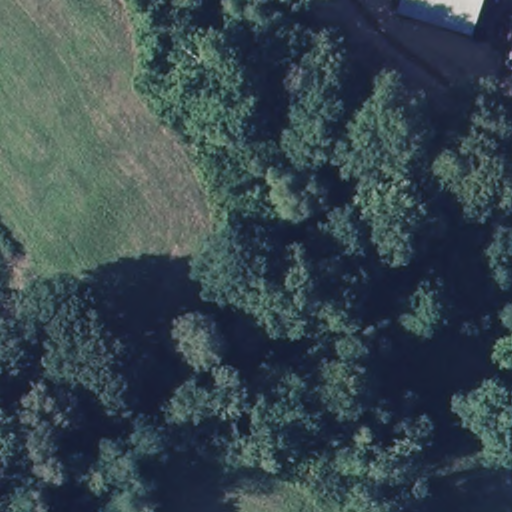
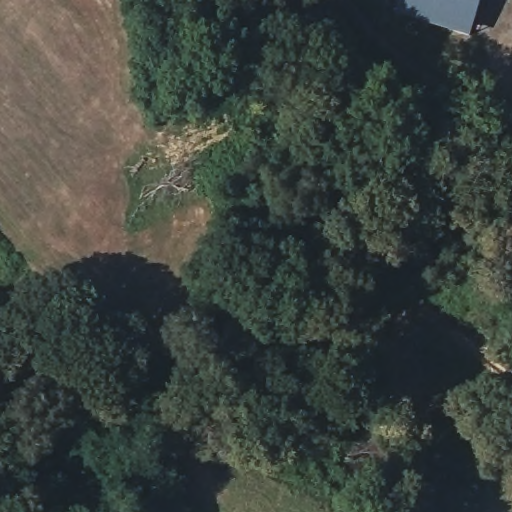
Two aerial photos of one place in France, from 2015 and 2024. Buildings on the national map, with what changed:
unchanged [(473,35),(397,9),(400,0),(485,0),(473,35)]

